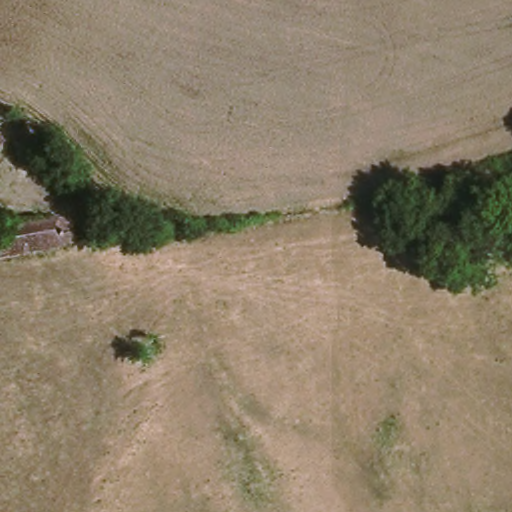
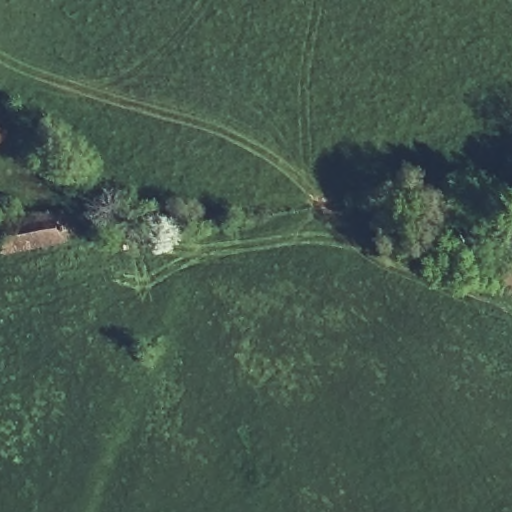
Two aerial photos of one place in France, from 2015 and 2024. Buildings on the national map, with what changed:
unchanged [(0,147),(0,119),(14,135),(0,147)]
unchanged [(69,213),(81,216),(85,242),(5,252),(2,223),(69,213)]

